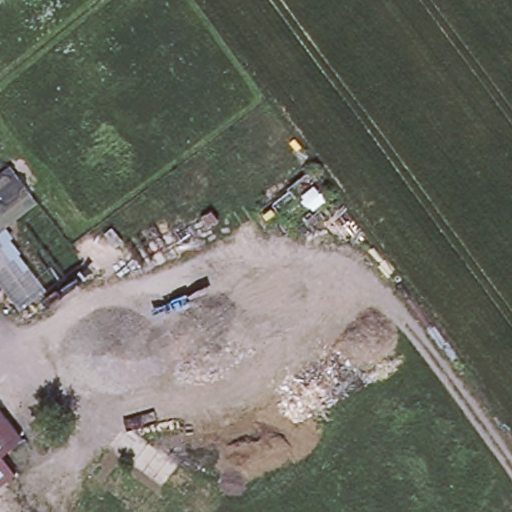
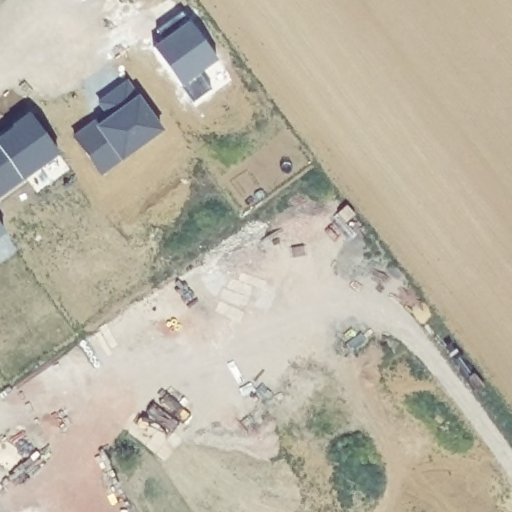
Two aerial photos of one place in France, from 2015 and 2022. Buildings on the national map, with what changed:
new [(190,21),(219,61),(184,86),(155,46),(190,21)]
new [(130,81),(165,130),(102,175),(74,137),(97,120),(99,124),(108,117),(98,102),(130,81)]
new [(62,155),(0,197),(0,139),(34,116),(62,155)]
new [(0,239),(0,225),(7,234),(0,239)]
demolished [(2,455),(17,475),(0,487),(0,409),(22,438),(2,455)]

